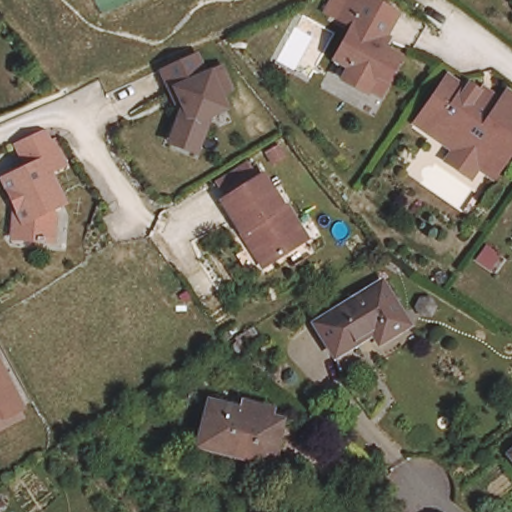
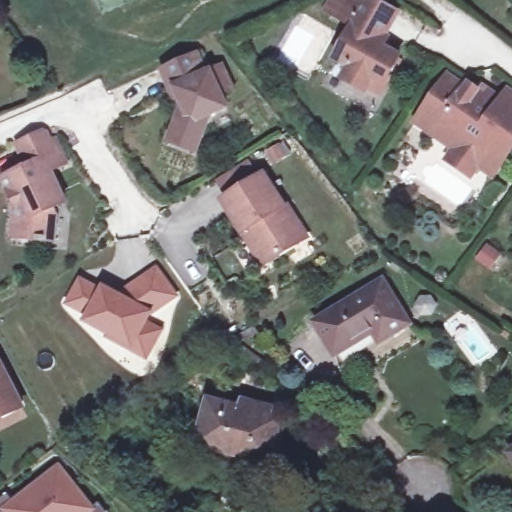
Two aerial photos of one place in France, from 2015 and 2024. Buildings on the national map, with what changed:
unchanged [(367,91),(344,79),(350,66),(335,59),(354,25),(342,19),(325,10),(331,0),(374,0),(394,11),(379,38),(386,42),(383,47),(400,57),(387,80),(380,93),(370,87),(367,91)]
unchanged [(177,142),(180,132),(190,105),(182,89),(177,90),(167,68),(192,56),(201,52),(211,75),(227,67),(237,89),(225,94),(232,107),(215,115),(205,142),(202,151),(177,142)]
unchanged [(472,177),(447,160),(455,150),(416,122),(448,76),(465,87),(467,84),(482,93),(485,89),(502,101),(509,91),(512,93),(512,151),(495,176),(480,166),(472,177)]
unchanged [(17,206),(4,179),(30,166),(20,142),(42,132),(48,134),(51,141),(55,139),(67,162),(50,170),(65,203),(52,209),(55,216),(53,239),(24,237),(14,236),(17,206)]
unchanged [(304,249),(269,270),(255,249),(258,247),(251,236),(249,237),(228,205),(234,201),(225,186),(255,166),(265,181),(269,179),(289,211),(291,210),(301,225),(312,244),(304,249)]
unchanged [(488,246),(500,255),(490,270),(477,260),(488,246)]
new [(80,276),(102,287),(103,285),(115,290),(158,265),(179,297),(155,313),(150,322),(165,330),(147,363),(107,340),(108,336),(84,323),(87,316),(64,305),(80,276)]
unchanged [(409,324),(380,342),(372,329),(335,352),(317,323),(383,282),(409,324)]
unchanged [(2,418),(0,413),(0,364),(22,408),(2,418)]
unchanged [(200,445),(210,402),(243,410),(245,403),(272,410),(270,417),(282,420),(272,456),(272,458),(272,459),(271,460),(270,460),(270,461),(269,461),(268,461),(267,461),(265,461),(264,461),(200,445)]
new [(0,500),(7,495),(15,504),(59,469),(92,510),(100,504),(106,512),(0,512),(0,500)]

